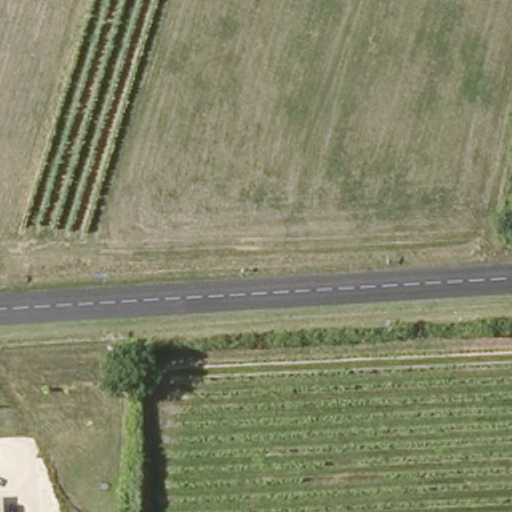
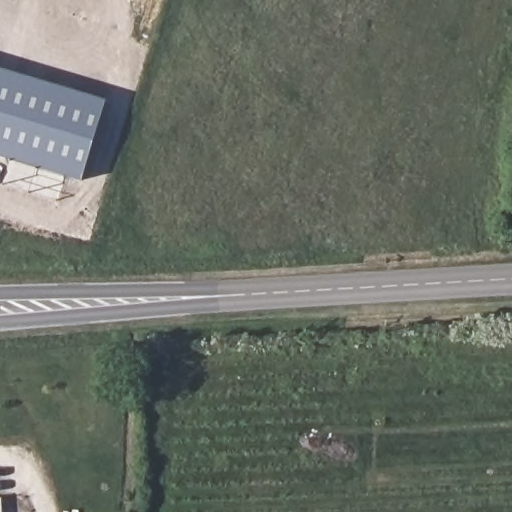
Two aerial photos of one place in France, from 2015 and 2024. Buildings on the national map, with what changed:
new [(103,104),(78,184),(0,161),(0,71),(103,104)]

